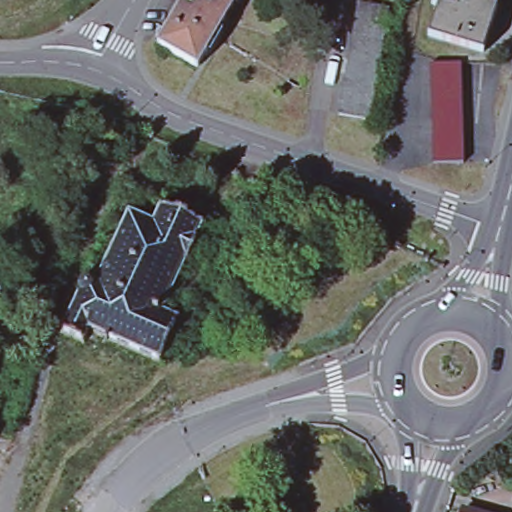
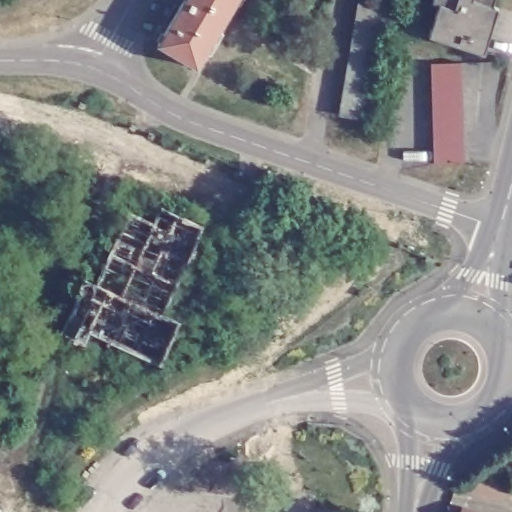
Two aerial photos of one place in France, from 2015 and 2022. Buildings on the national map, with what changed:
unchanged [(180,0),(235,0),(195,67),(157,45),(183,2),(180,0)]
unchanged [(490,6),(495,7),(481,51),(427,33),(438,1),(432,0),(492,0),(490,6)]
unchanged [(387,10),(368,121),(339,116),(358,5),(387,10)]
unchanged [(462,58),(467,158),(436,159),(430,59),(462,58)]
unchanged [(77,286),(83,273),(96,279),(129,206),(152,217),(160,200),(200,219),(195,232),(197,232),(187,253),(185,253),(160,307),(177,315),(177,318),(158,357),(88,325),(82,336),(61,327),(79,287),(77,286)]
unchanged [(177,315),(160,307),(185,253),(187,253),(210,265),(185,322),(177,318),(177,315)]
unchanged [(474,512),(467,512),(467,510),(474,512)]

